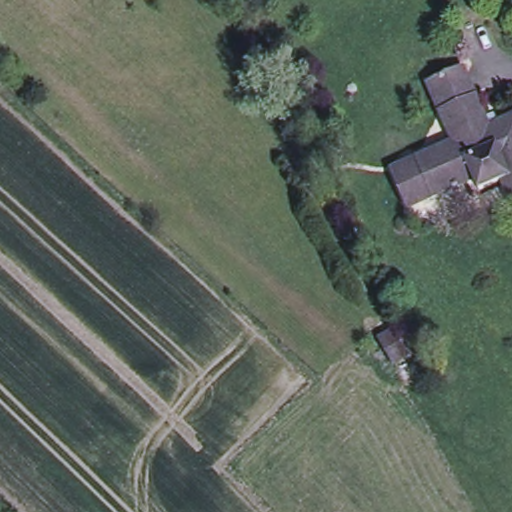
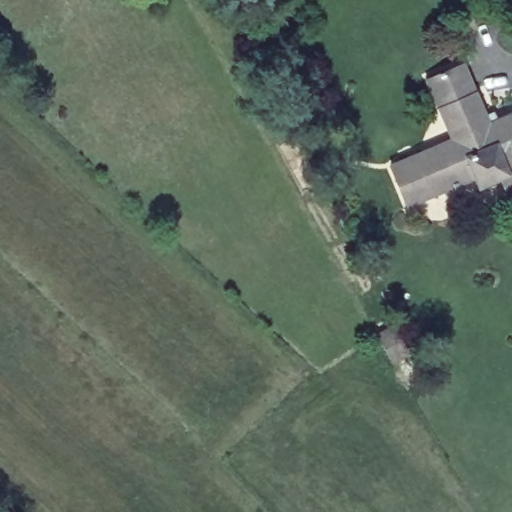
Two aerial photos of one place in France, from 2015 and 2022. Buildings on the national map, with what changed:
unchanged [(416,154),(453,139),(427,78),(462,64),(486,114),(494,111),(498,120),(512,114),(512,198),(502,177),(479,187),(474,177),(407,205),(392,171),(389,165),(416,154)]

